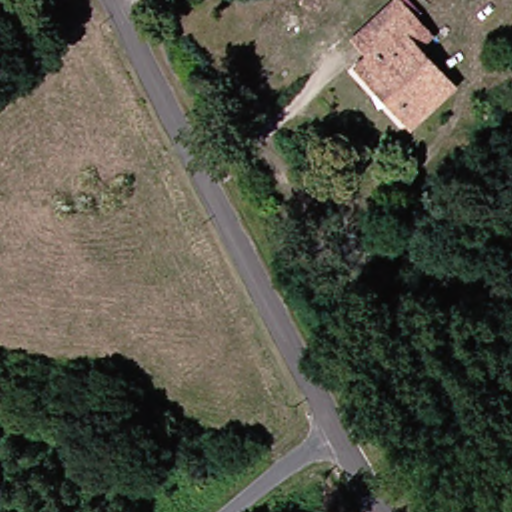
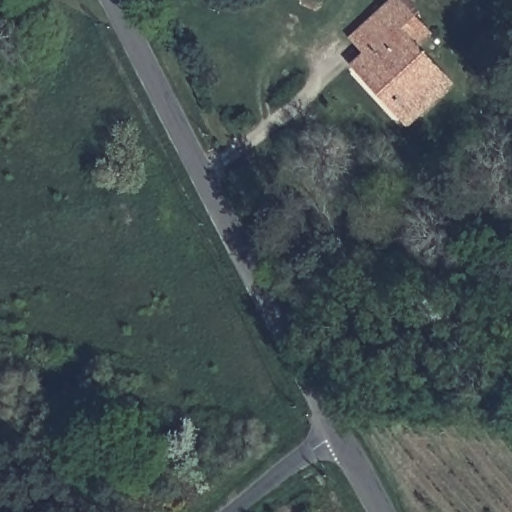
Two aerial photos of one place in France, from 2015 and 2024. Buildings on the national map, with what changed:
unchanged [(366,66),(351,52),(363,36),(388,3),(407,19),(425,30),(410,50),(452,81),(419,126),(398,110),(379,93),(359,78),(366,66)]

